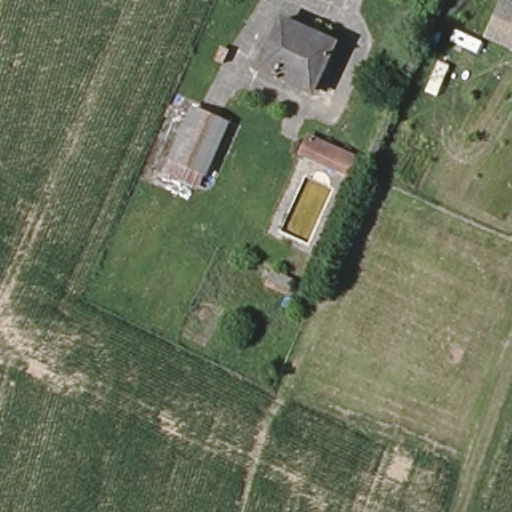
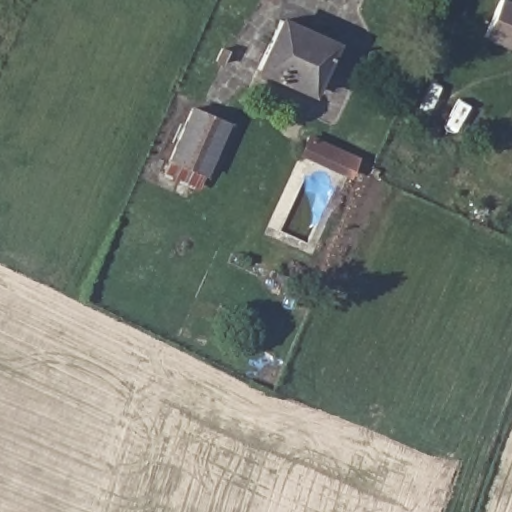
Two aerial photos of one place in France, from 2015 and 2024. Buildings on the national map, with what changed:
unchanged [(512,4),(512,49),(483,37),(498,0),(502,0),(512,4)]
unchanged [(309,34),(307,40),(330,51),(310,93),(258,69),(280,21),(309,34)]
unchanged [(201,104),(224,115),(235,120),(213,170),(209,168),(203,182),(173,168),(179,155),(201,104)]
unchanged [(301,154),(308,139),(352,160),(355,161),(348,176),(346,175),(301,154)]

